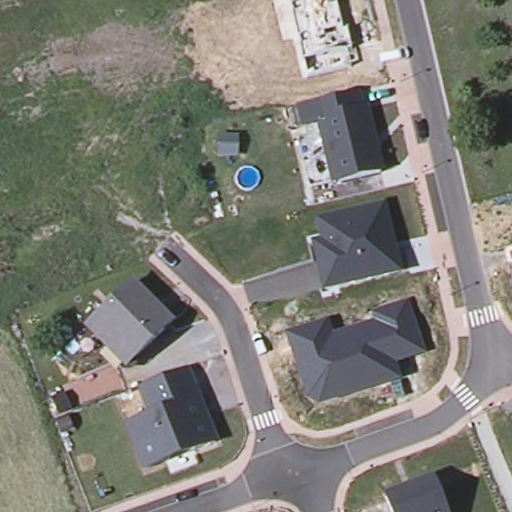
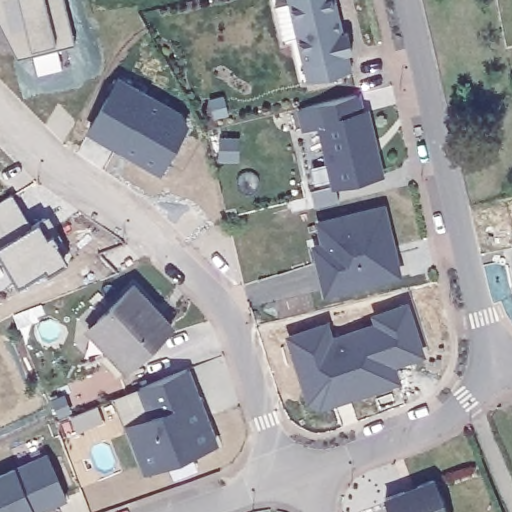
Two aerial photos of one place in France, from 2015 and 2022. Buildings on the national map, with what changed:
new [(17,56),(0,24),(0,0),(64,0),(75,42),(17,56)]
new [(346,28),(352,53),(348,53),(352,69),(306,80),(287,0),(336,0),(342,28),(346,28)]
new [(117,77),(177,111),(185,123),(158,169),(130,152),(132,148),(119,140),(117,145),(87,128),(117,77)]
new [(221,93),(225,111),(212,114),(207,96),(221,93)]
unchanged [(363,128),(369,127),(384,191),(337,202),(323,140),(307,143),(303,124),(360,111),(363,128)]
new [(218,136),(232,136),(232,157),(217,156),(218,136)]
new [(30,226),(48,215),(60,235),(54,240),(66,260),(47,271),(45,266),(18,282),(0,252),(0,202),(12,195),(30,226)]
unchanged [(397,270),(323,288),(312,243),(322,240),(317,219),(381,204),(397,270)]
unchanged [(134,356),(124,365),(118,359),(86,325),(130,282),(169,322),(134,356)]
unchanged [(318,407),(307,400),(287,334),(330,320),(334,333),(373,323),(371,313),(411,302),(427,356),(397,366),(402,381),(318,407)]
unchanged [(148,418),(137,390),(180,374),(184,372),(185,373),(213,446),(187,456),(185,453),(167,460),(167,464),(143,473),(136,455),(125,427),(148,418)]
new [(68,496),(47,504),(46,501),(35,506),(36,509),(30,512),(0,512),(0,473),(50,452),(68,496)]
unchanged [(435,476),(447,512),(391,512),(385,495),(435,476)]

